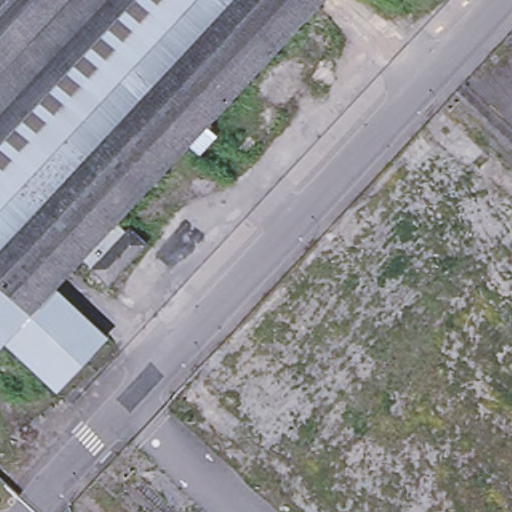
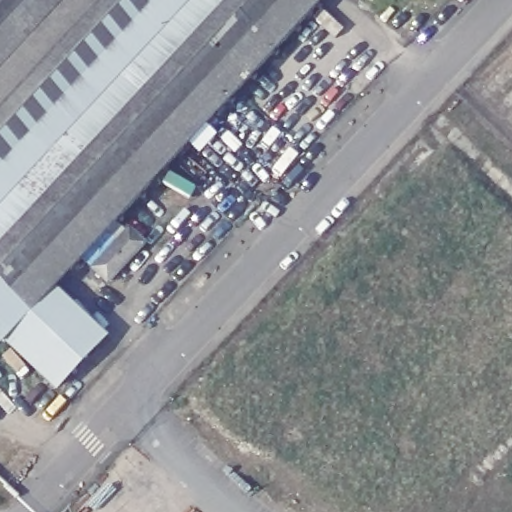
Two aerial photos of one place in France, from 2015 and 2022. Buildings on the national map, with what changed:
unchanged [(113,228),(123,236),(126,233),(140,245),(105,284),(91,271),(81,262),(52,294),(101,338),(53,391),(4,346),(3,347),(0,344),(0,0),(314,0),(318,4),(113,228)]
unchanged [(314,0),(322,0),(318,4),(314,0)]

